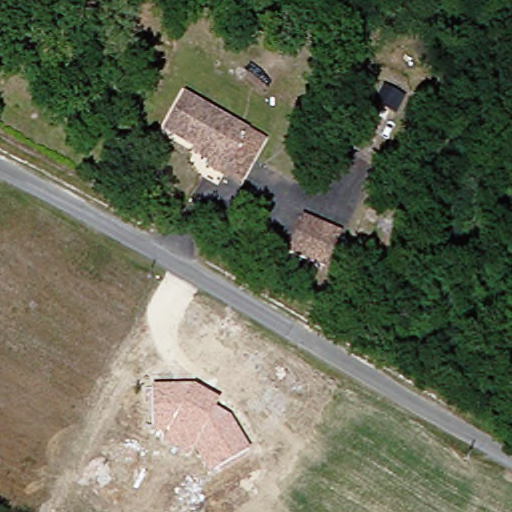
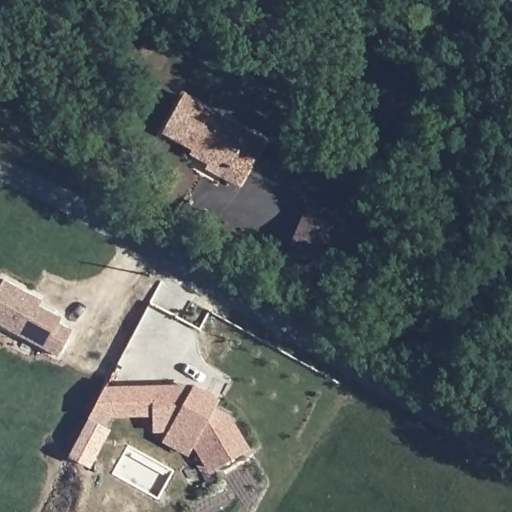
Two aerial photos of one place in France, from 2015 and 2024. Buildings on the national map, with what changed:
unchanged [(191,151),(159,134),(177,97),(241,131),(215,182),(200,174),(205,167),(187,158),(191,151)]
unchanged [(256,141),(233,191),(215,182),(241,131),(256,141)]
unchanged [(300,222),(335,238),(319,271),(284,254),(300,222)]
new [(3,278),(40,300),(40,304),(60,317),(59,320),(72,329),(59,356),(0,326),(0,284),(3,278)]
unchanged [(195,383),(220,398),(215,407),(230,414),(248,448),(208,474),(191,448),(186,457),(161,444),(167,432),(154,432),(151,385),(195,383)]
new [(105,386),(151,385),(153,416),(89,416),(105,386)]
new [(69,456),(89,418),(111,430),(90,467),(69,456)]

